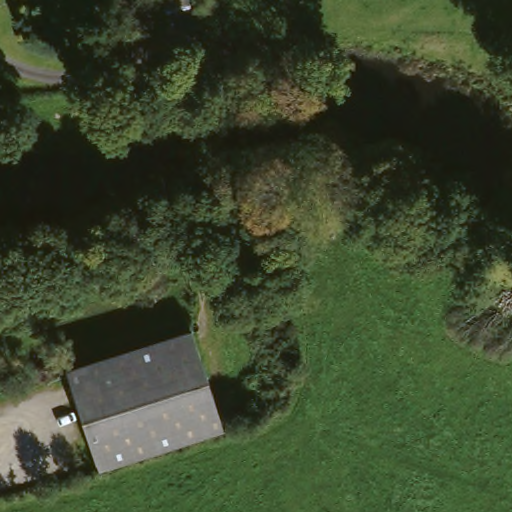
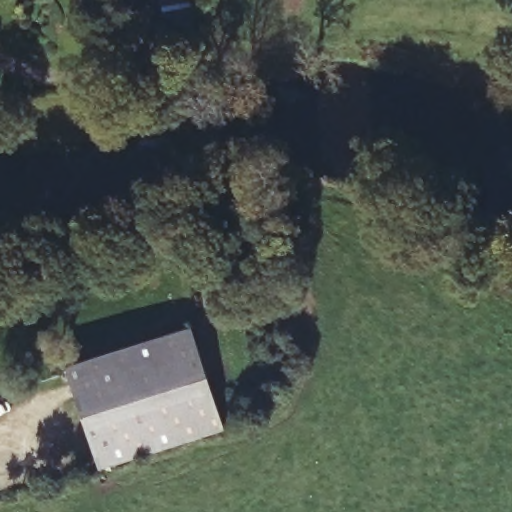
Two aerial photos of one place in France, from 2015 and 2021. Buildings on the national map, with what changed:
unchanged [(157,1),(162,0),(186,0),(189,28),(161,32),(157,1)]
unchanged [(102,480),(66,379),(187,329),(225,428),(102,480)]

